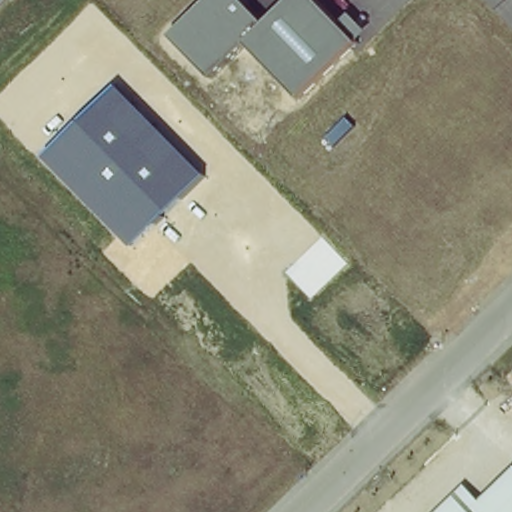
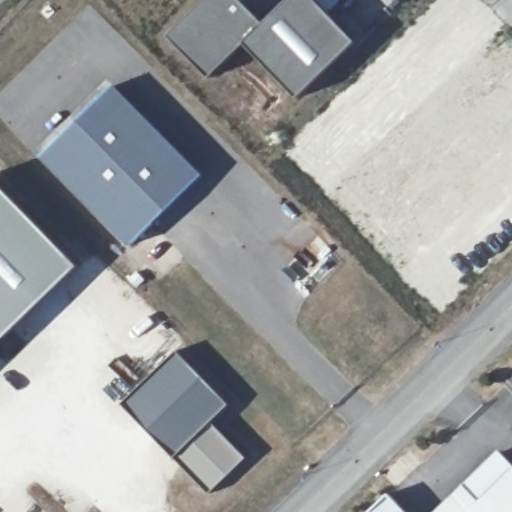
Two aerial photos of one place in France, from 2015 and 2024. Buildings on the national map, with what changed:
unchanged [(242,0),(265,26),(292,0),(316,0),(341,24),(352,13),(370,32),(299,101),(246,45),(210,79),(171,35),(207,0),(242,0)]
unchanged [(117,85),(205,173),(132,246),(44,158),(117,85)]
new [(0,338),(0,189),(75,265),(0,338)]
new [(234,404),(216,422),(252,458),(212,495),(124,404),(180,349),(234,404)]
new [(498,451),(512,465),(512,470),(481,500),(464,484),(498,451)]
unchanged [(464,484),(481,500),(512,470),(512,512),(436,512),(464,484)]

